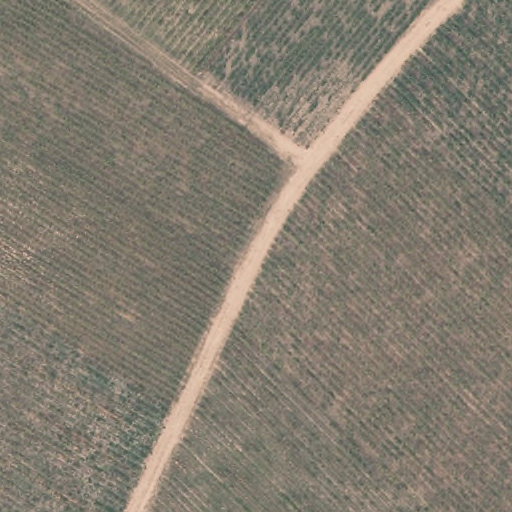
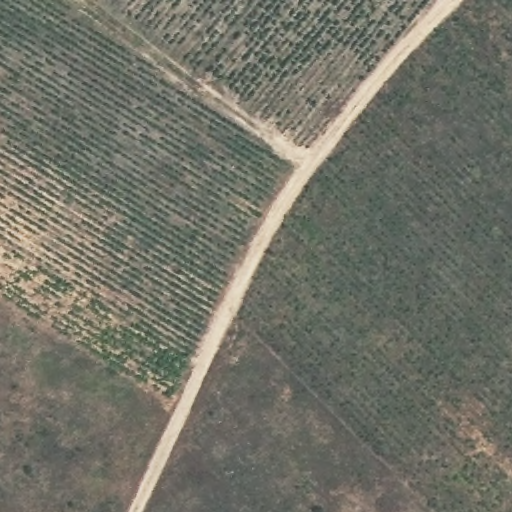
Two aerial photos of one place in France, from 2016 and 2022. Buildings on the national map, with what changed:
[]

